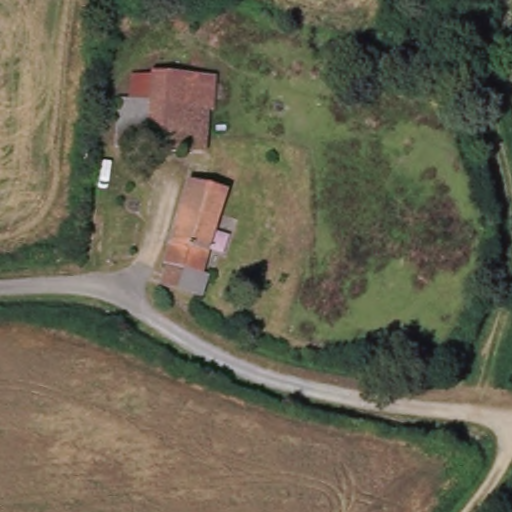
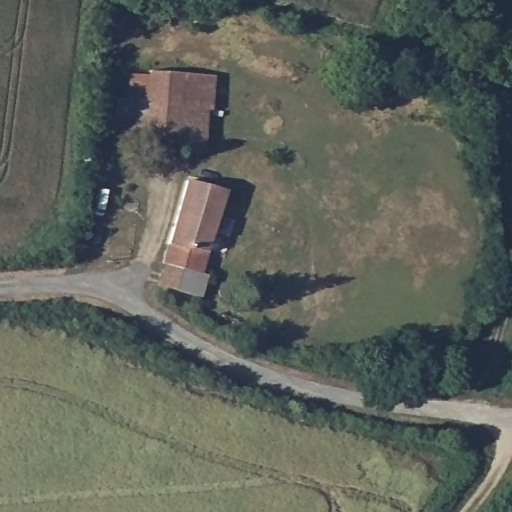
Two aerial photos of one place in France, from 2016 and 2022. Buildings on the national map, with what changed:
unchanged [(152,103),(156,76),(215,84),(224,85),(220,111),(209,110),(204,158),(115,146),(121,99),(152,103)]
unchanged [(209,190),(229,196),(227,202),(217,240),(221,241),(224,242),(228,243),(225,254),(204,248),(197,275),(207,278),(202,293),(199,304),(192,302),(166,294),(154,291),(156,286),(185,184),(209,190)]

